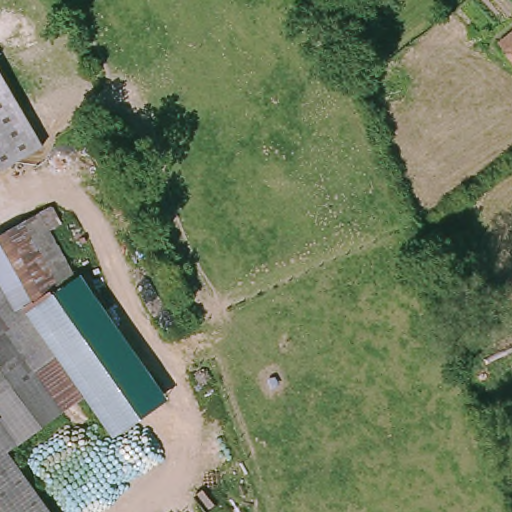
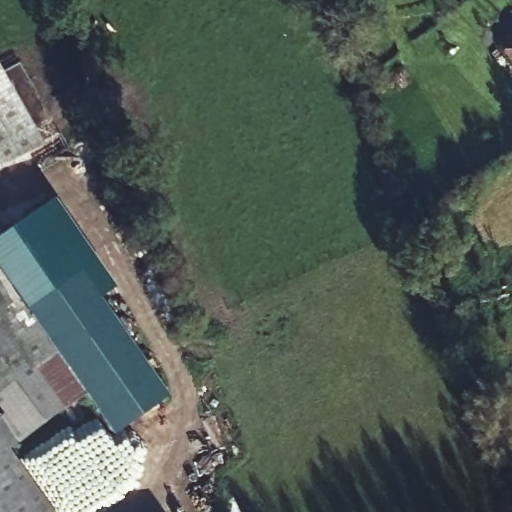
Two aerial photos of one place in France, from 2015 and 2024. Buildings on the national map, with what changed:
unchanged [(493,50),(512,32),(512,68),(493,50)]
unchanged [(0,165),(0,63),(43,140),(0,165)]
unchanged [(51,205),(62,223),(50,230),(76,275),(52,289),(80,337),(60,352),(90,395),(7,451),(51,512),(0,512),(0,233),(21,222),(51,205)]
unchanged [(167,398),(112,436),(85,398),(90,395),(60,352),(80,337),(52,289),(76,275),(167,398)]

